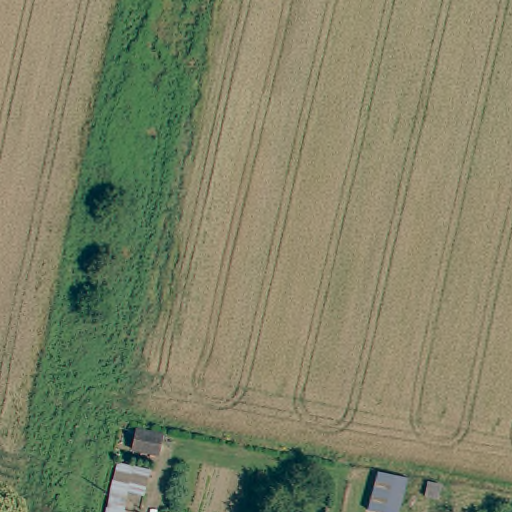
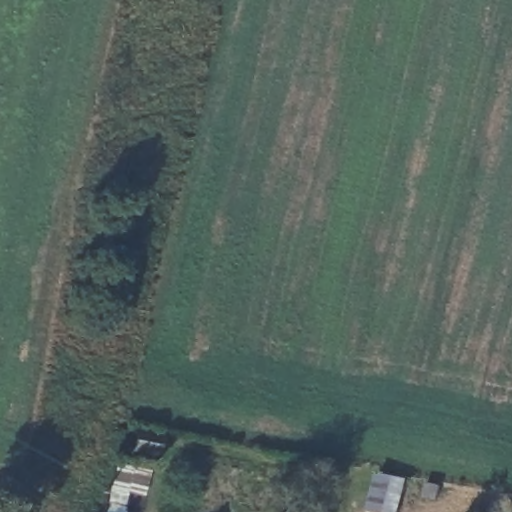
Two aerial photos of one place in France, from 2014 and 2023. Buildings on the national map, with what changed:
unchanged [(159,445),(156,460),(137,454),(141,441),(159,445)]
unchanged [(406,481),(400,512),(370,512),(377,475),(406,480),(406,481)]

